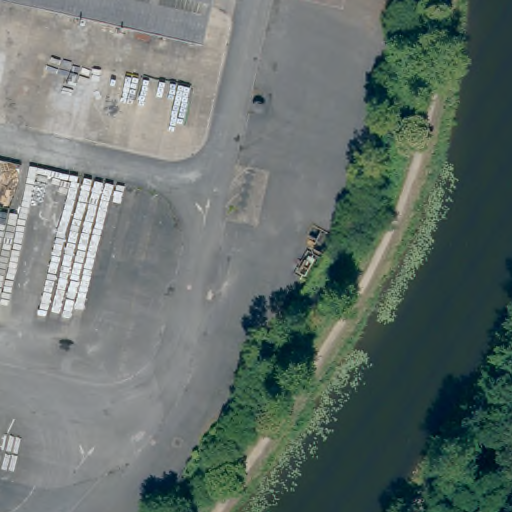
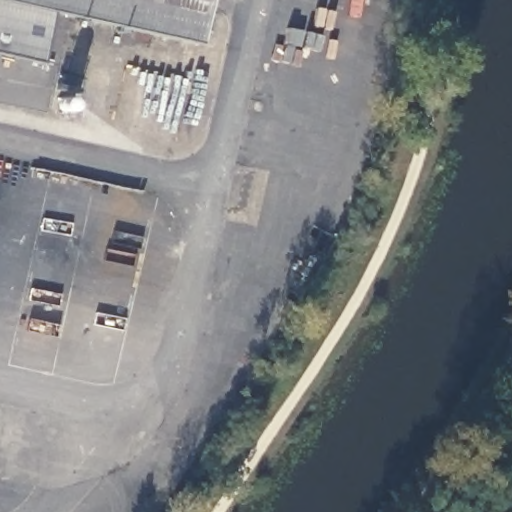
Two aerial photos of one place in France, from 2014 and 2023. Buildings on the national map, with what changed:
unchanged [(195,45),(0,1),(0,0),(205,0),(195,45)]
new [(40,62),(0,54),(0,1),(49,12),(40,62)]

